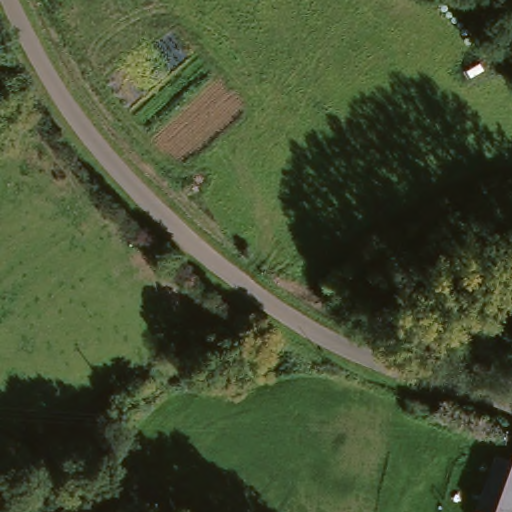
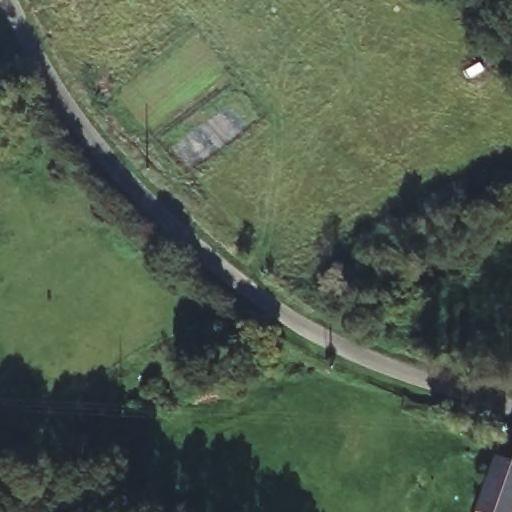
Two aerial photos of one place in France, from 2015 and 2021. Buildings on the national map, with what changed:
unchanged [(510,459),(495,454),(504,431),(512,435),(512,460),(510,459)]
unchanged [(474,510),(491,462),(512,469),(512,503),(509,512),(474,512),(474,510)]

